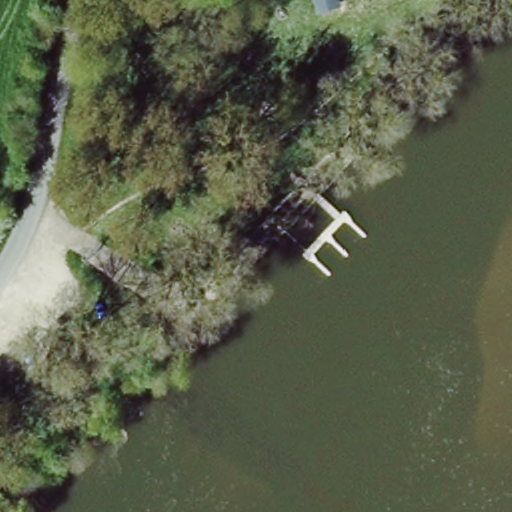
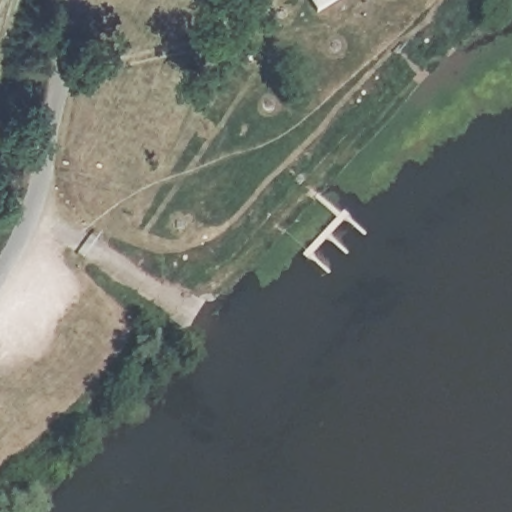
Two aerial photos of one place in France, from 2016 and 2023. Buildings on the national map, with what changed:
unchanged [(344,4),(319,13),(314,0),(343,0),(344,4)]

